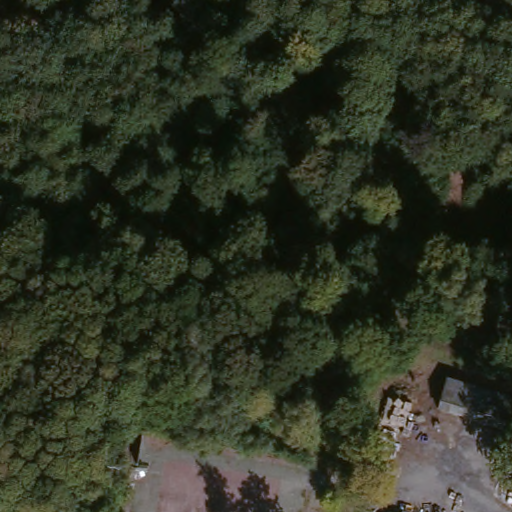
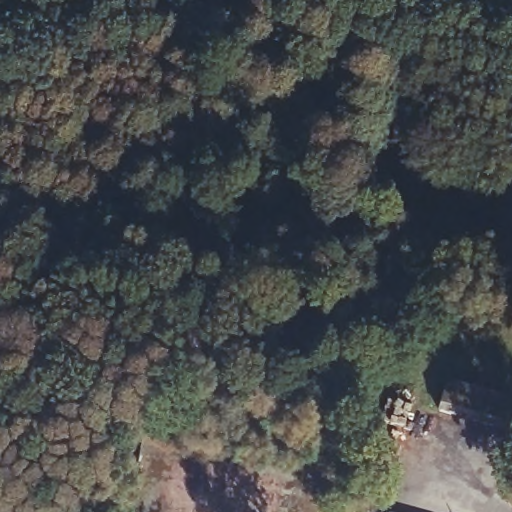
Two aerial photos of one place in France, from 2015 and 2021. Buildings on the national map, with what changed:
unchanged [(512,421),(506,440),(434,420),(444,385),(512,405),(512,421)]

